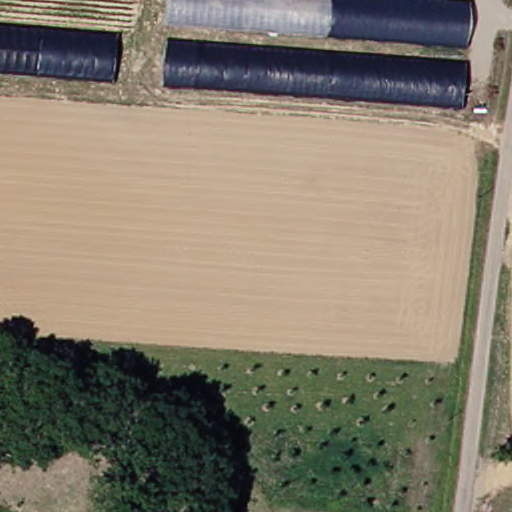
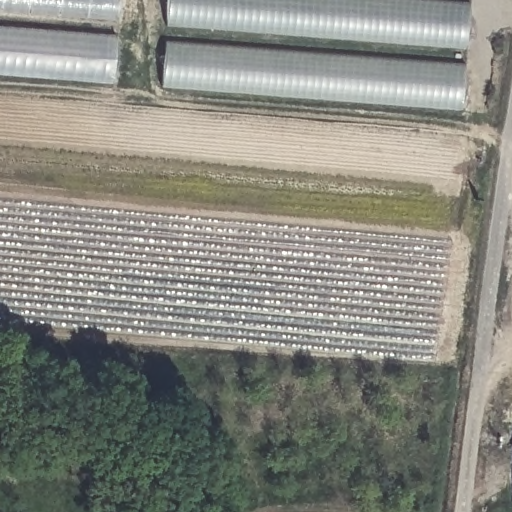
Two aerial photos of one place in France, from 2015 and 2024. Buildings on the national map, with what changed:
new [(0,13),(0,0),(120,0),(119,23),(0,13)]
unchanged [(158,22),(160,0),(447,0),(460,1),(454,44),(158,22)]
unchanged [(0,71),(0,22),(118,31),(115,79),(0,71)]
unchanged [(450,104),(155,84),(160,40),(455,63),(450,104)]

